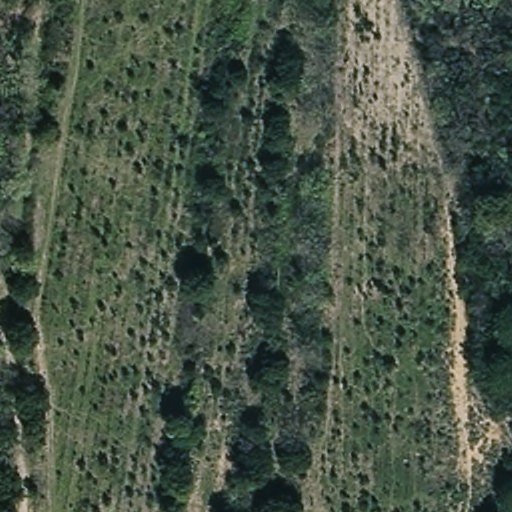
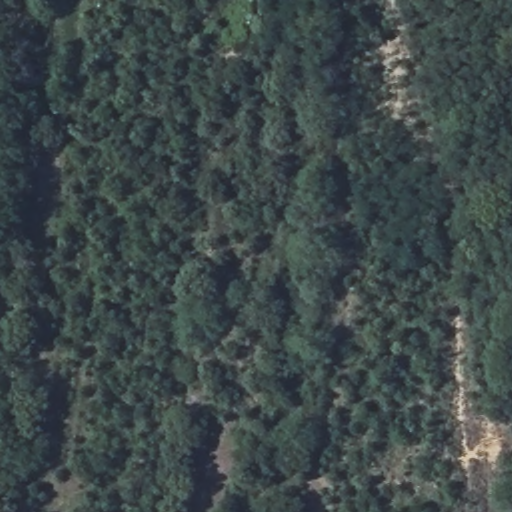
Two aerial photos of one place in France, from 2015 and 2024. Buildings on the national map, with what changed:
[]

